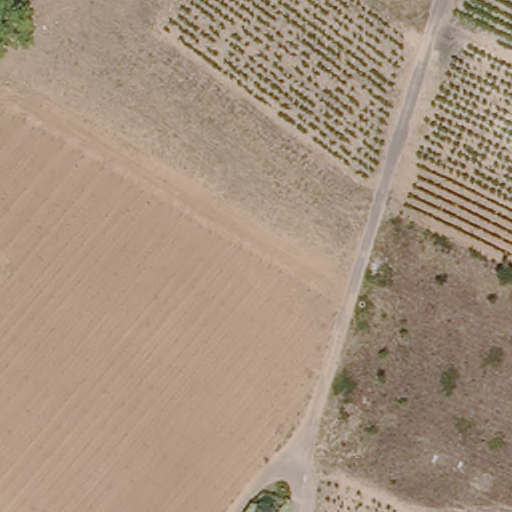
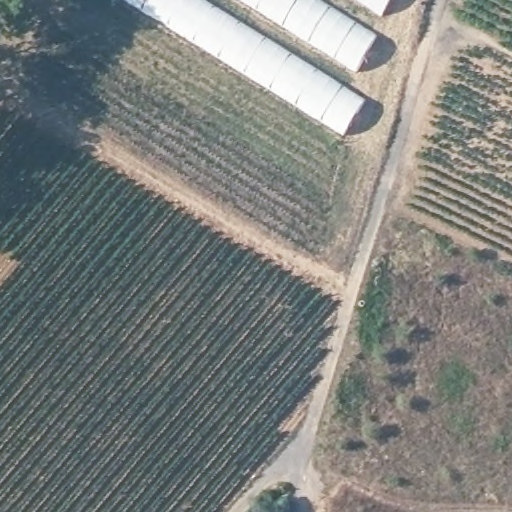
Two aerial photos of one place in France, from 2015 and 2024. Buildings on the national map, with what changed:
new [(125,0),(206,0),(367,99),(344,135),(125,0)]
new [(239,0),(321,0),(378,35),(356,72),(239,0)]
new [(355,0),(390,0),(380,16),(355,0)]

